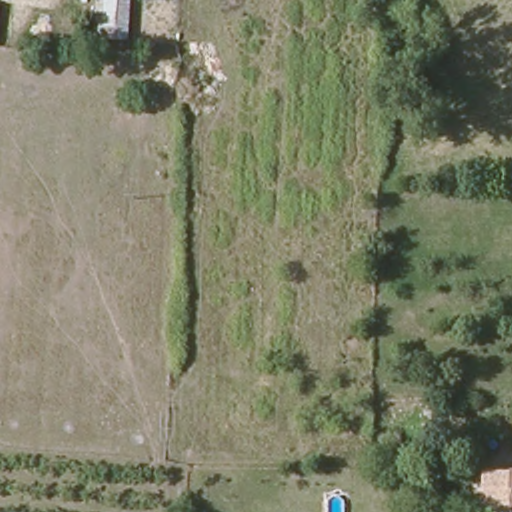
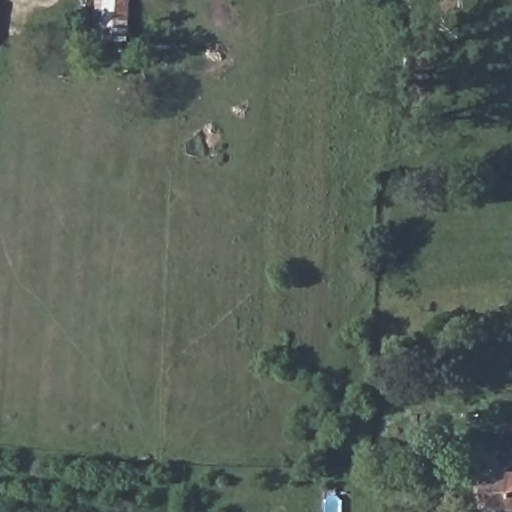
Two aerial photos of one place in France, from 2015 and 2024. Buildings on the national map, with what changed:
unchanged [(96,44),(98,0),(135,0),(130,46),(96,44)]
unchanged [(0,48),(0,4),(6,4),(0,48)]

